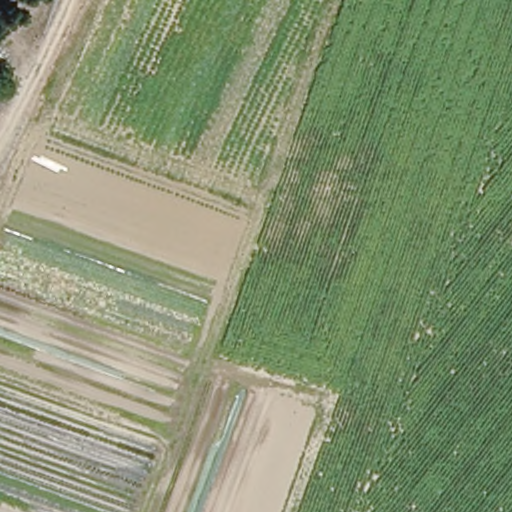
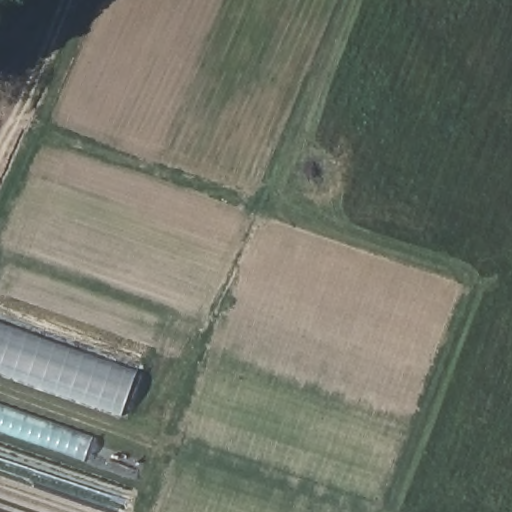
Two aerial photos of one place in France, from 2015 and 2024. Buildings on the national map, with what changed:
new [(0,374),(0,323),(137,372),(122,417),(0,374)]
new [(94,436),(84,462),(0,433),(0,404),(94,436)]

